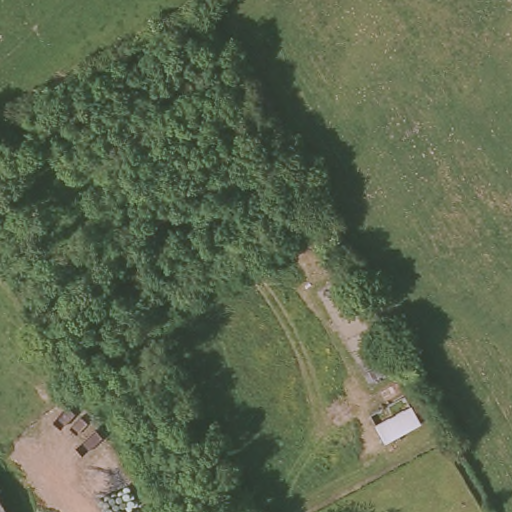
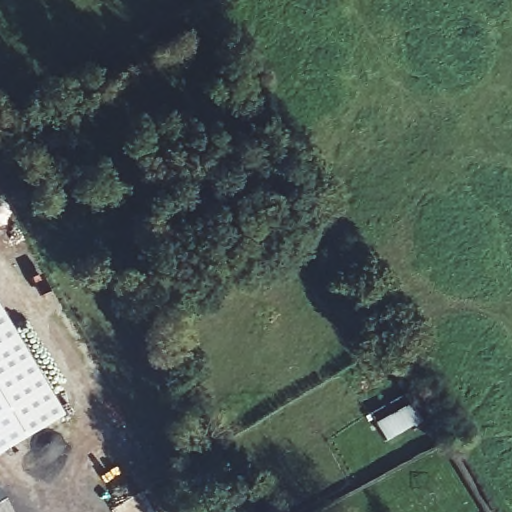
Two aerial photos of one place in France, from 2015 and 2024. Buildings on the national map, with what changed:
new [(0,452),(0,319),(60,420),(0,452)]
unchanged [(378,428),(415,405),(427,427),(390,447),(378,428)]
unchanged [(0,503),(6,512),(0,512),(0,503)]

